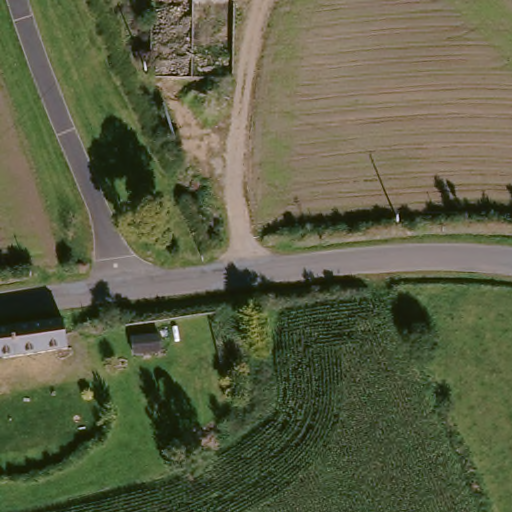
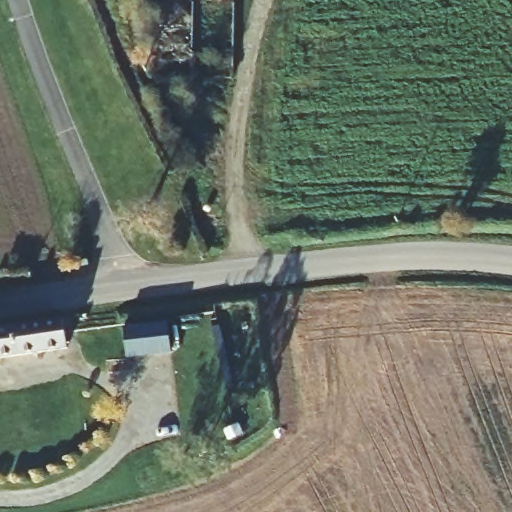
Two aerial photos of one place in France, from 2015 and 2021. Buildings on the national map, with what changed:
unchanged [(61,356),(0,365),(0,335),(57,327),(61,356)]
unchanged [(157,342),(159,357),(131,361),(129,345),(157,342)]

